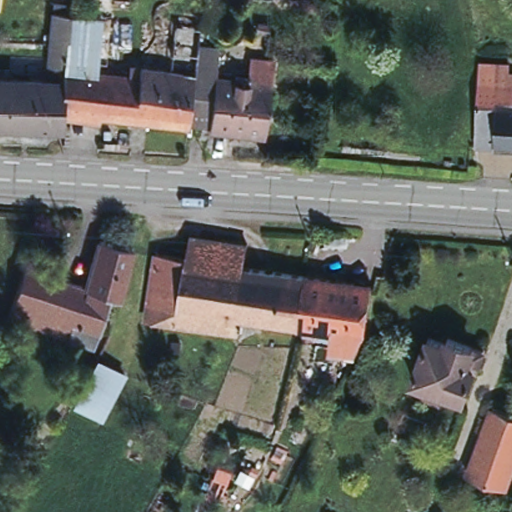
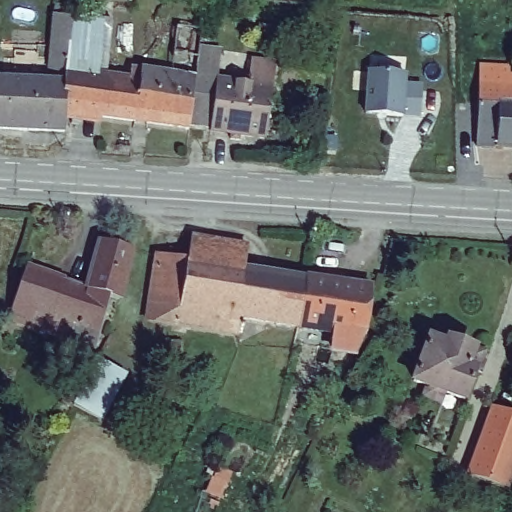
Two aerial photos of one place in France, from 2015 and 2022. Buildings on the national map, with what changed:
unchanged [(70,77),(69,90),(46,88),(57,21),(58,11),(78,12),(76,22),(73,77),(70,77)]
unchanged [(176,130),(114,123),(121,82),(133,84),(134,74),(179,80),(181,80),(198,82),(199,79),(183,77),(190,17),(208,19),(213,20),(206,80),(204,99),(196,99),(191,132),(176,130)]
unchanged [(234,144),(234,137),(214,135),(221,85),(251,89),(255,65),(279,69),(276,92),(270,142),(243,139),(243,145),(234,144)]
new [(407,72),(407,82),(423,84),(421,116),(403,117),(364,115),(366,71),(407,72)]
unchanged [(481,150),(483,109),(484,87),(484,71),(512,72),(512,152),(501,151),(481,150)]
unchanged [(70,77),(73,77),(121,82),(114,123),(70,118),(68,117),(69,90),(70,77)]
unchanged [(69,90),(68,117),(70,118),(68,136),(0,131),(0,84),(1,85),(46,88),(69,90)]
unchanged [(133,249),(121,299),(110,297),(88,292),(89,287),(100,241),(133,249)]
unchanged [(246,250),(243,272),(187,263),(191,241),(246,250)]
unchanged [(209,334),(145,324),(156,258),(187,263),(243,272),(305,282),(299,330),(242,322),(239,339),(209,334)]
unchanged [(26,267),(61,278),(43,331),(8,319),(26,267)]
unchanged [(89,287),(88,292),(110,297),(103,332),(96,349),(43,331),(61,278),(89,287)]
unchanged [(336,360),(323,358),(326,335),(299,330),(305,282),(337,287),(373,292),(369,320),(364,341),(353,367),(336,360)]
unchanged [(101,418),(73,404),(79,392),(98,359),(111,335),(120,339),(107,365),(124,375),(101,418)]
unchanged [(424,396),(428,387),(414,382),(431,339),(446,345),(448,338),(484,352),(481,359),(476,372),(474,371),(463,400),(442,392),(439,401),(424,396)]
unchanged [(512,471),(506,487),(468,472),(493,406),(512,413),(512,471)]

